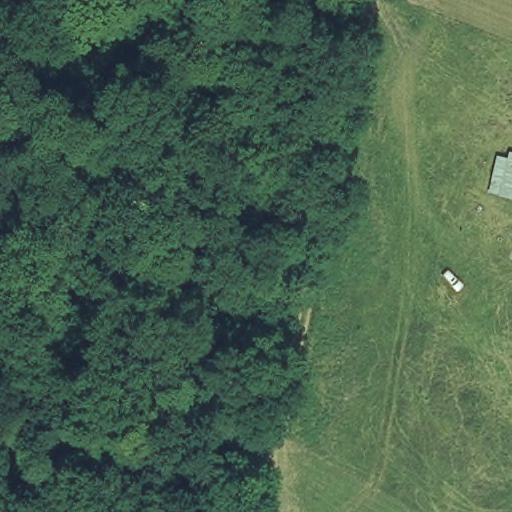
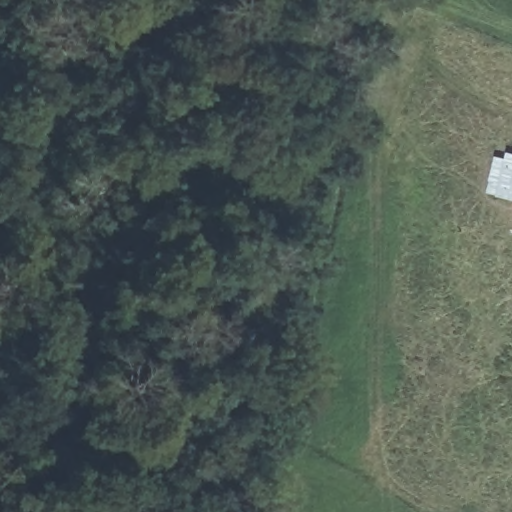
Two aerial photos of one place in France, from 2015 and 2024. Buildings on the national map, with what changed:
unchanged [(512,198),(496,195),(506,149),(512,150),(512,198)]

